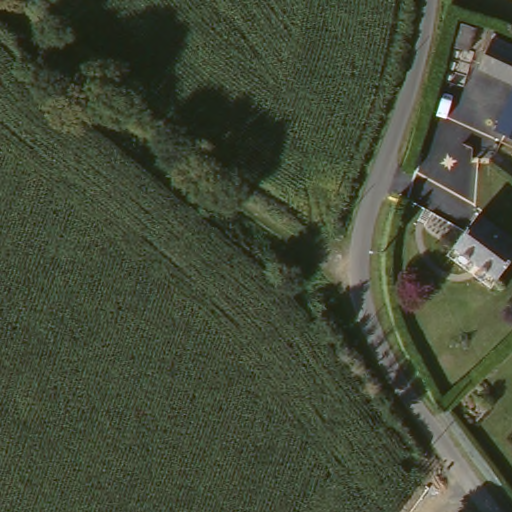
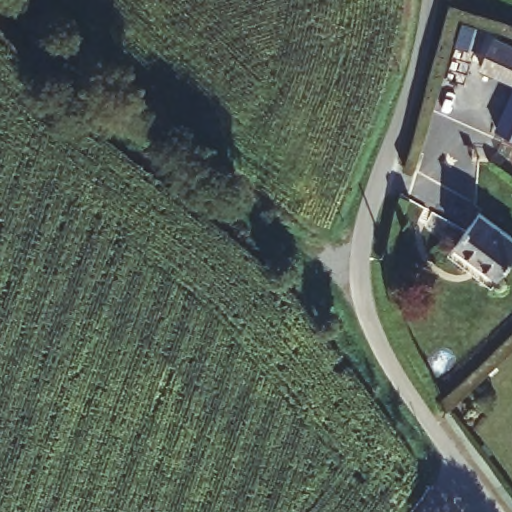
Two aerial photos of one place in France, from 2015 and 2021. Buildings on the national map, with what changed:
unchanged [(469,14),(463,35),(451,31),(457,10),(469,14)]
unchanged [(512,41),(512,79),(479,62),(495,34),(512,41)]
unchanged [(512,86),(512,134),(495,127),(512,86)]
unchanged [(512,233),(512,261),(500,275),(456,240),(483,210),(512,233)]

